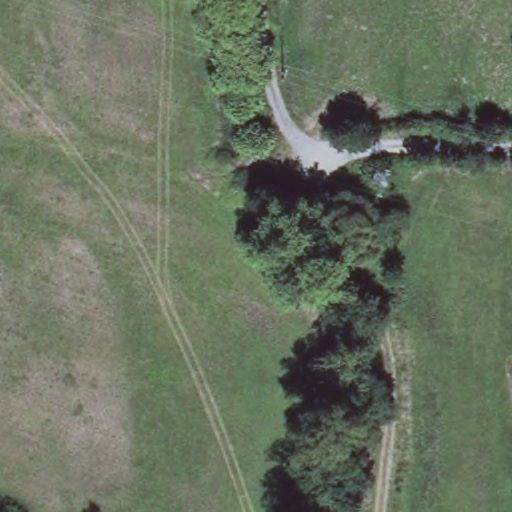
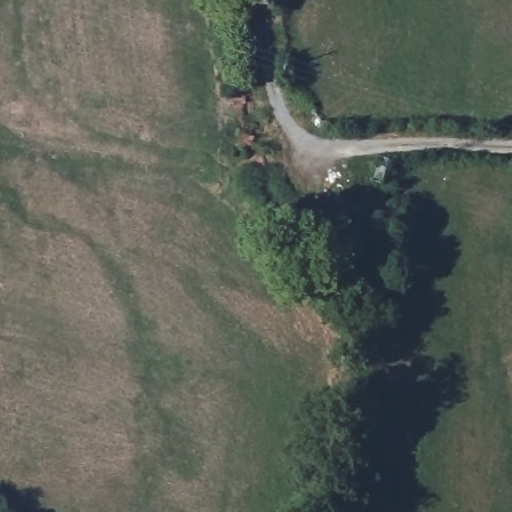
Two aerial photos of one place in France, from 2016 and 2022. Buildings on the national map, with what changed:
[]

